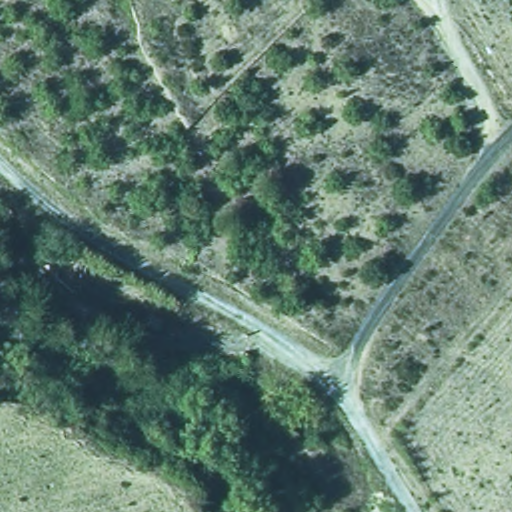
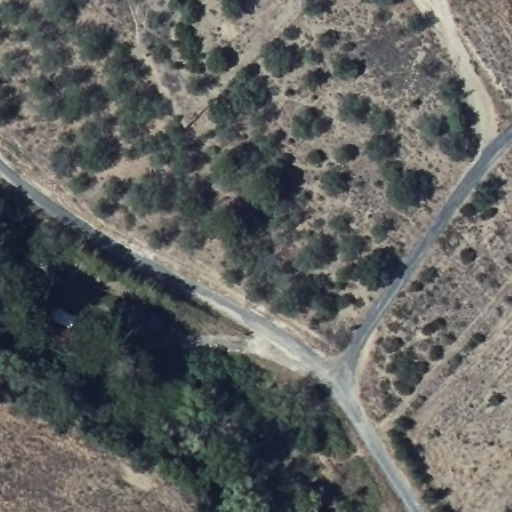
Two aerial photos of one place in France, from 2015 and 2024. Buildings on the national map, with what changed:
unchanged [(171,315),(171,327),(154,325),(156,313),(171,315)]

